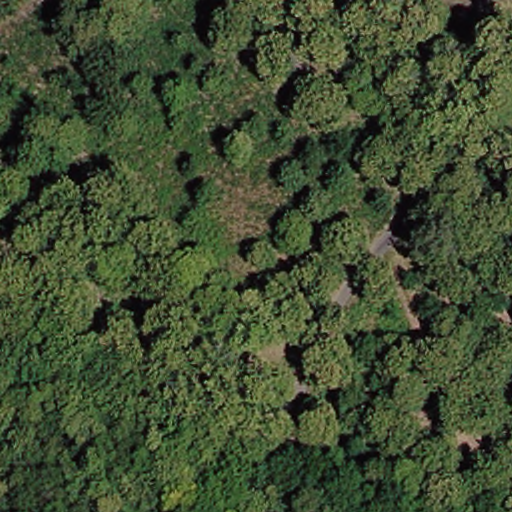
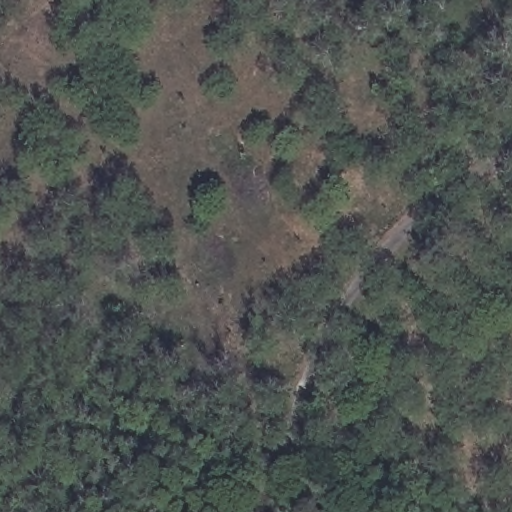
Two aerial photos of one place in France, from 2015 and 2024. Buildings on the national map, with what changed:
[]

